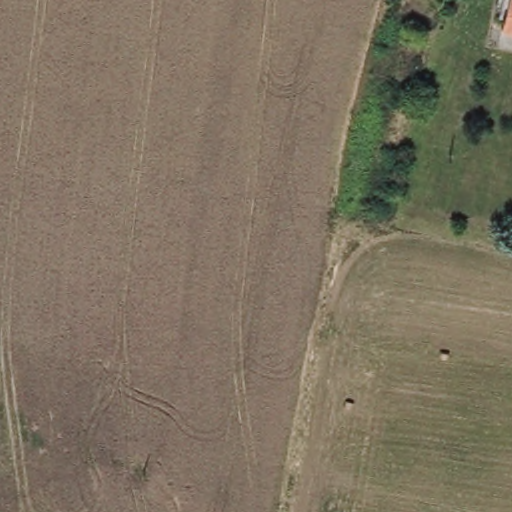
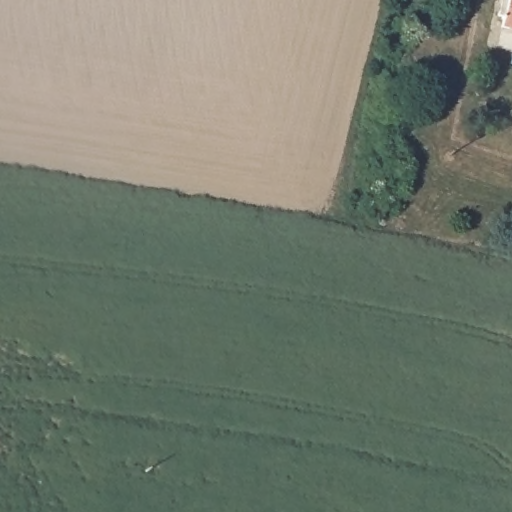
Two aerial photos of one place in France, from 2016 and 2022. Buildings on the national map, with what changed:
unchanged [(511,0),(512,0),(512,30),(503,27),(511,0)]

